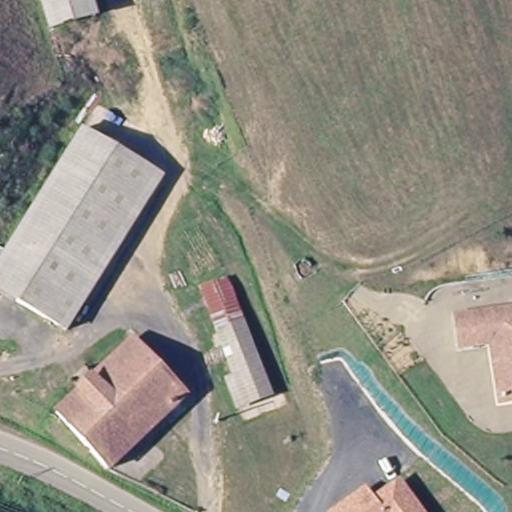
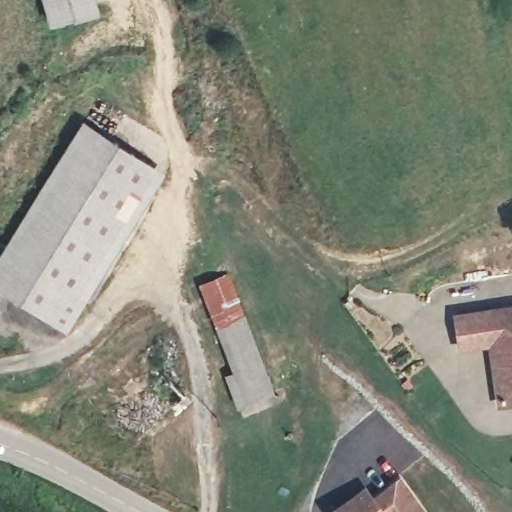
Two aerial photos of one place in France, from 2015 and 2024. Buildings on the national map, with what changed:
unchanged [(97,6),(50,21),(45,0),(95,0),(97,6)]
unchanged [(66,295),(78,305),(61,330),(0,286),(0,247),(87,125),(150,170),(66,295)]
unchanged [(165,181),(78,305),(66,295),(150,170),(165,181)]
unchanged [(204,291),(227,281),(244,325),(220,333),(204,291)]
unchanged [(512,400),(497,402),(488,345),(485,310),(512,306),(512,400)]
unchanged [(455,350),(452,315),(485,310),(488,345),(455,350)]
unchanged [(220,333),(244,325),(272,396),(247,406),(220,333)]
demolished [(98,375),(136,341),(186,397),(150,429),(98,375)]
demolished [(60,410),(98,375),(150,429),(111,463),(60,410)]
unchanged [(372,496),(401,476),(426,512),(329,512),(365,486),(372,496)]

